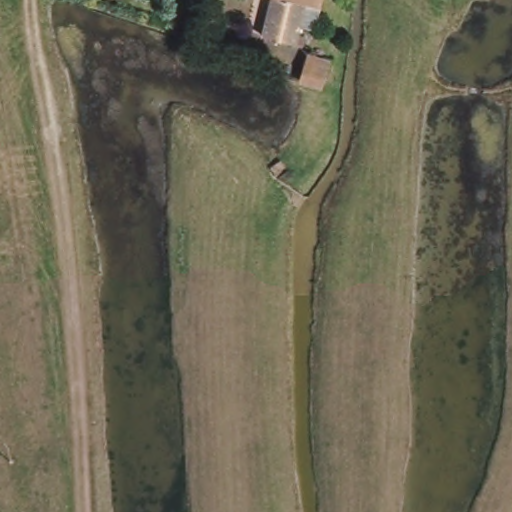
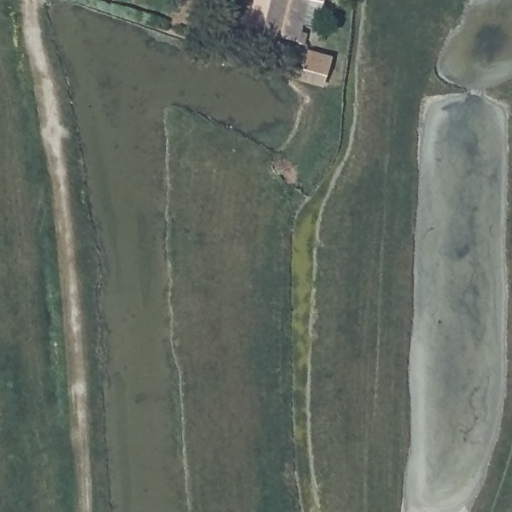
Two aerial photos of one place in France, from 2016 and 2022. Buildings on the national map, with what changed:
unchanged [(308,2),(299,46),(268,40),(277,0),(325,0),(324,5),(308,2)]
unchanged [(336,59),(333,77),(310,73),(314,56),(336,59)]

